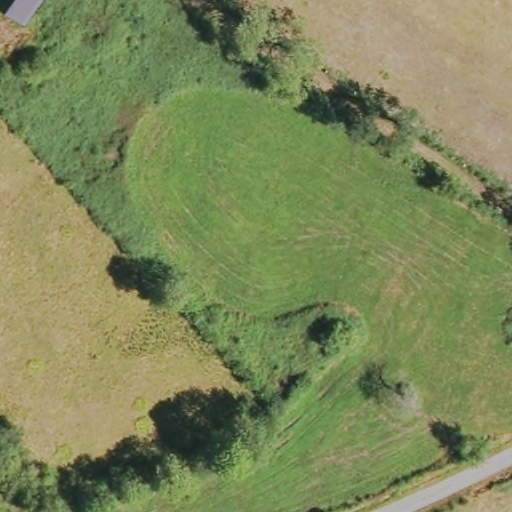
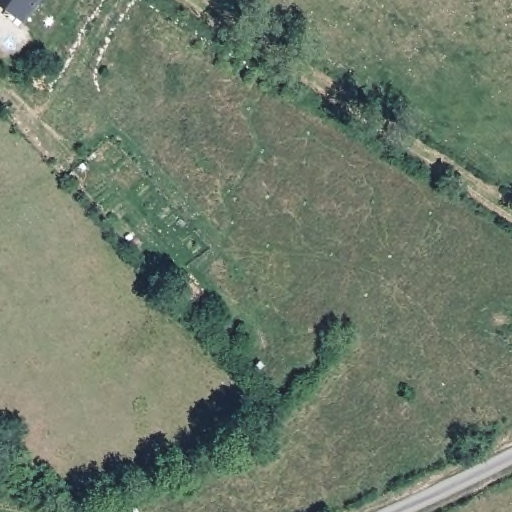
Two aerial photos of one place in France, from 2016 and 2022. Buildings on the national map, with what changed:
unchanged [(23,22),(0,6),(0,0),(38,0),(23,22)]

